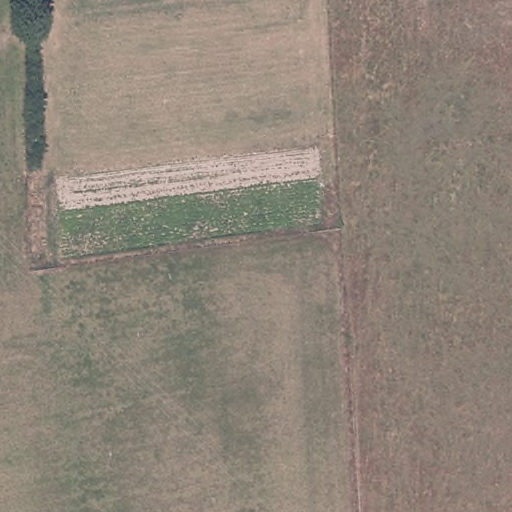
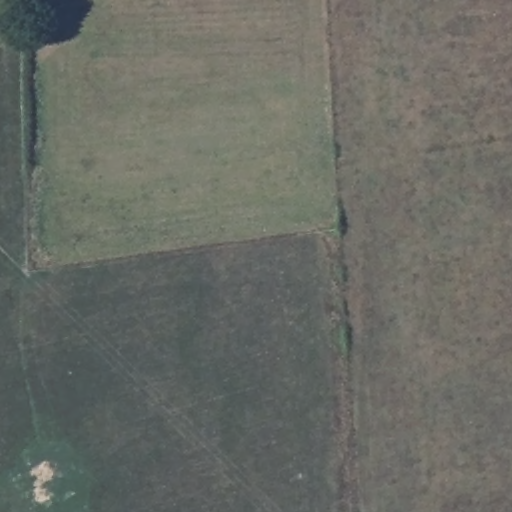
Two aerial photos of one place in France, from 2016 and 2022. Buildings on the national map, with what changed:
[]

